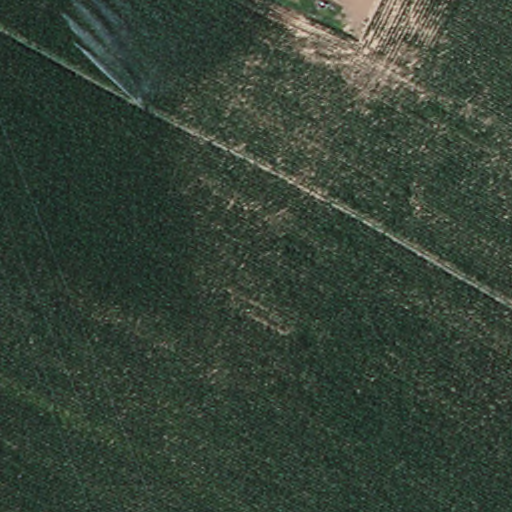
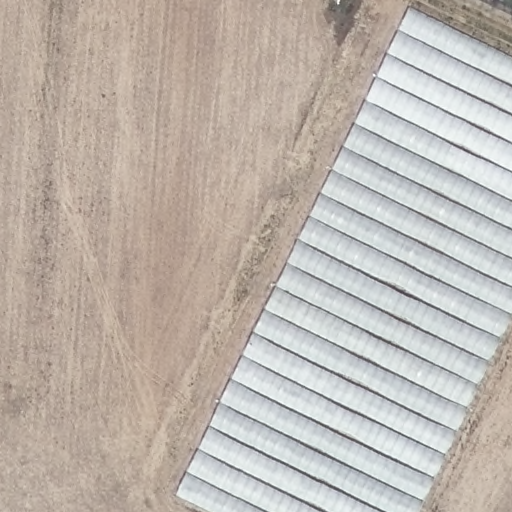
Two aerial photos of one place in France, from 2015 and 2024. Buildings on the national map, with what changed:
new [(512,57),(512,319),(419,512),(212,512),(179,496),(410,7),(512,57)]

